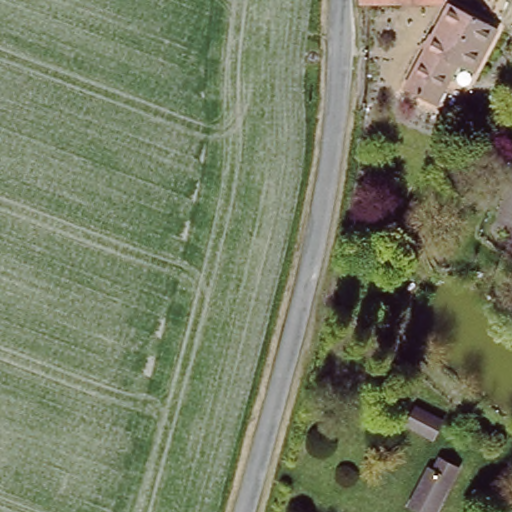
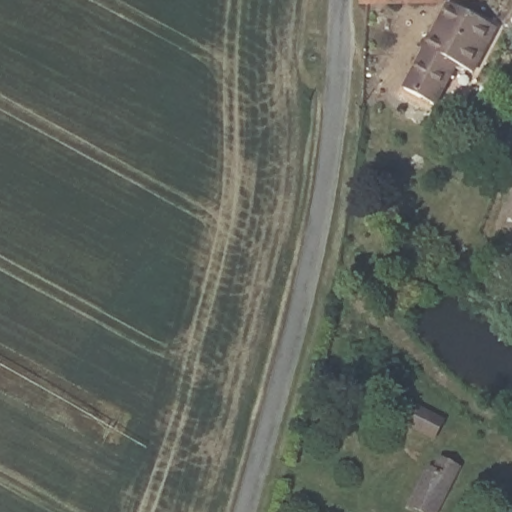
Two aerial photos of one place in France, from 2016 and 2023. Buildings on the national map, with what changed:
unchanged [(420,1),(369,1),(360,1),(361,0),(442,0),(442,1),(420,1)]
unchanged [(496,30),(472,76),(459,68),(438,106),(407,89),(451,6),(496,30)]
unchanged [(444,417),(436,437),(407,424),(415,404),(444,417)]
unchanged [(442,458),(460,466),(437,512),(427,512),(413,504),(430,469),(435,471),(442,458)]

